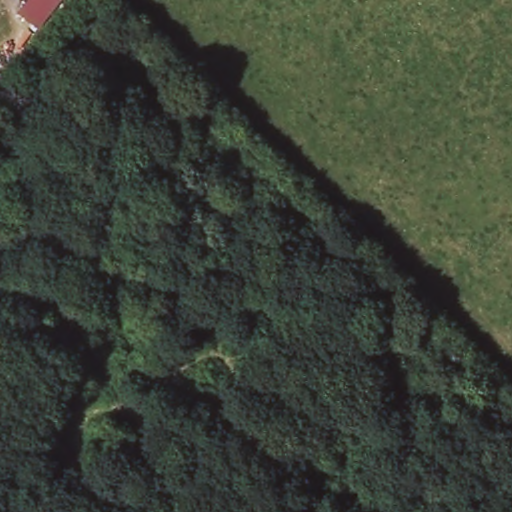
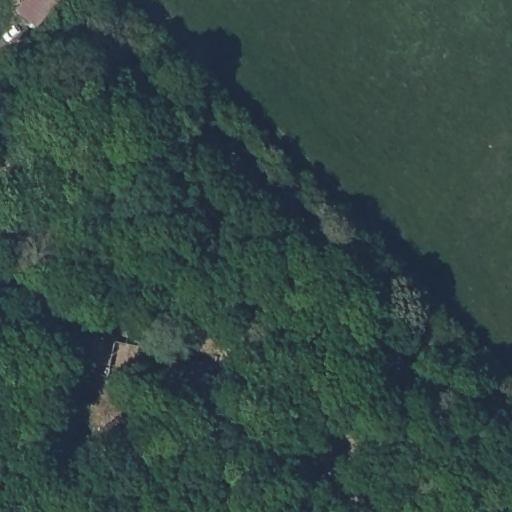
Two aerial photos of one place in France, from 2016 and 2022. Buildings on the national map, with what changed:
unchanged [(37,30),(16,12),(26,0),(63,0),(37,30)]

